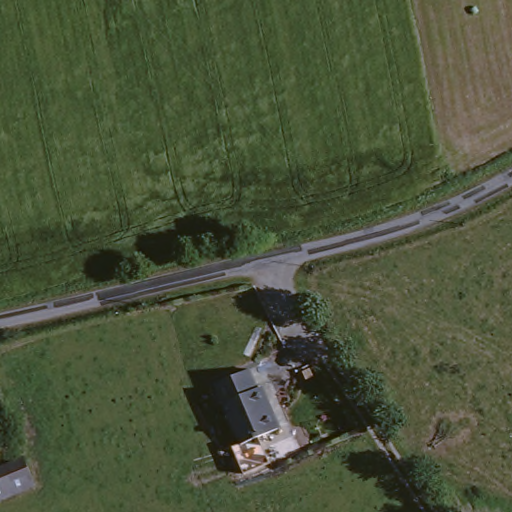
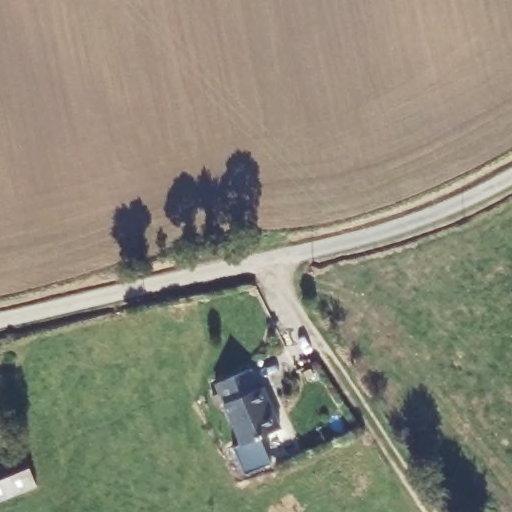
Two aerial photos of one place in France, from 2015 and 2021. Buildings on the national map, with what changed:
unchanged [(241,447),(217,389),(254,371),(284,429),(241,447)]
unchanged [(28,461),(37,489),(0,502),(0,471),(28,461)]

